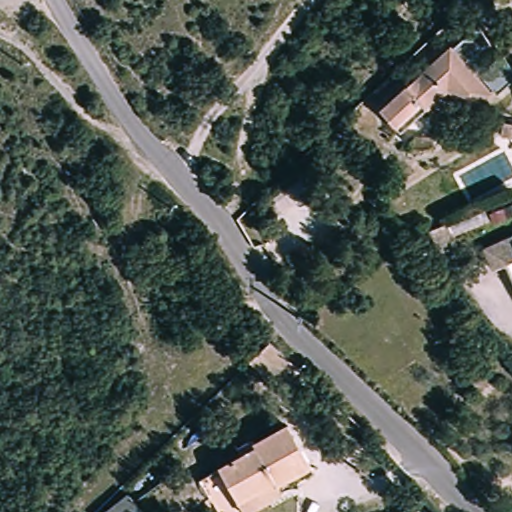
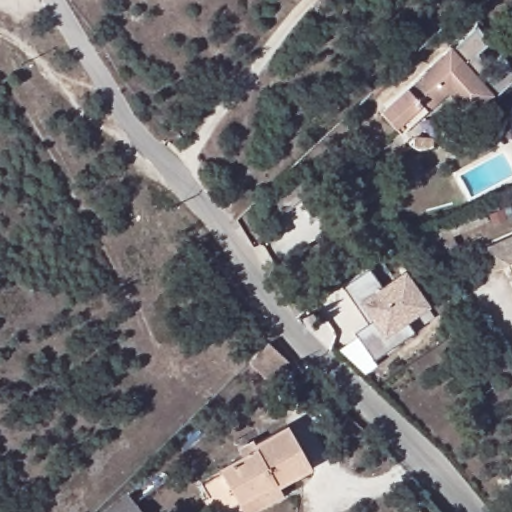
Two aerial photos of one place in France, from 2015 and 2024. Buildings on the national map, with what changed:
unchanged [(379,106),(461,32),(482,55),(470,66),(490,89),(469,109),(447,85),(399,129),(379,106)]
unchanged [(512,124),(512,137),(500,135),(502,122),(512,124)]
unchanged [(493,265),(492,264),(490,262),(489,261),(482,244),(512,231),(512,278),(504,260),(493,265)]
new [(393,345),(372,359),(353,332),(366,322),(360,314),(341,285),(367,267),(381,287),(403,272),(425,304),(404,318),(413,331),(393,345)]
unchanged [(249,362),(269,343),(288,361),(269,380),(249,362)]
unchanged [(249,510),(242,497),(223,464),(247,451),(242,442),(256,435),(259,439),(258,440),(292,420),(316,462),(282,480),(287,489),(249,510)]
unchanged [(129,496),(142,512),(107,512),(129,496)]
unchanged [(417,509),(421,512),(415,512),(417,509)]

